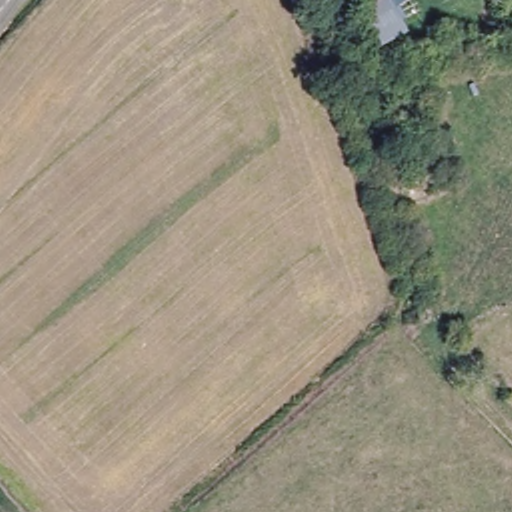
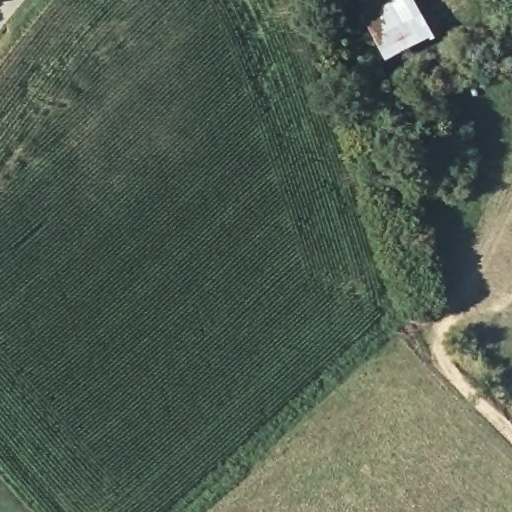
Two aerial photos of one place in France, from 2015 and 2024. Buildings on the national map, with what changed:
unchanged [(351,0),(385,0),(361,11),(351,0)]
new [(431,34),(383,59),(359,12),(361,11),(384,0),(413,0),(431,34)]

